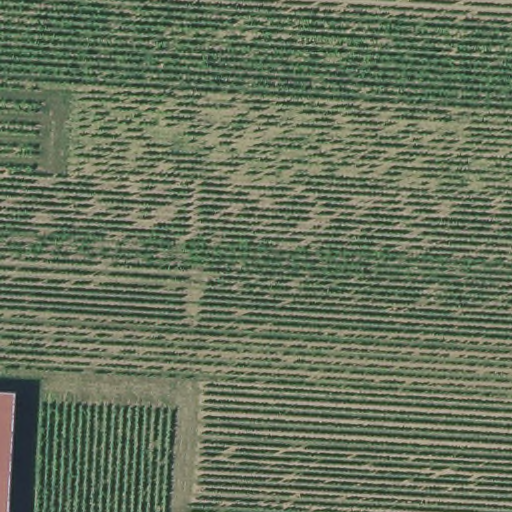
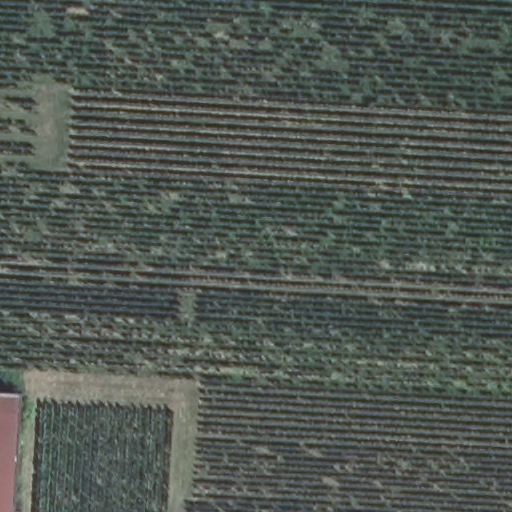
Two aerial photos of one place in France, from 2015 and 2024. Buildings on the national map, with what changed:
unchanged [(13,392),(11,428),(9,456),(8,490),(6,512),(0,512),(0,391),(13,392)]

